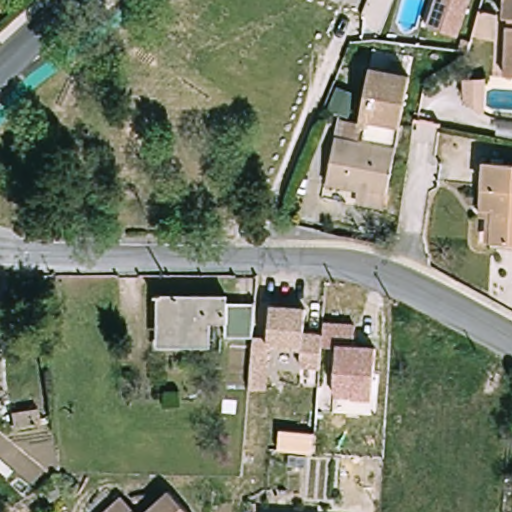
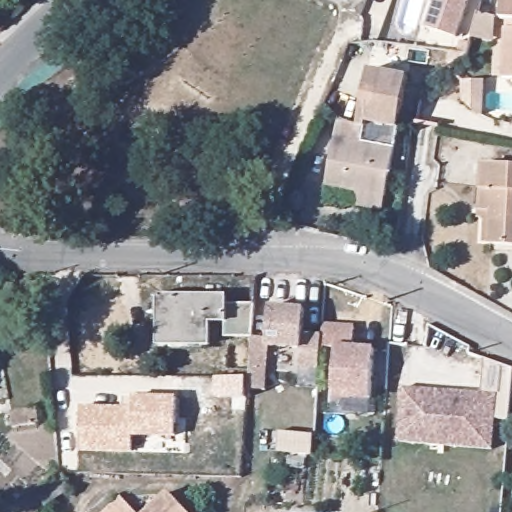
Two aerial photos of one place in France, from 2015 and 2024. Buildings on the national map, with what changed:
unchanged [(425,25),(433,0),(467,0),(456,35),(425,25)]
unchanged [(503,78),(507,19),(501,19),(502,0),(512,0),(512,78),(503,78)]
unchanged [(493,15),(491,41),(471,37),(478,11),(493,15)]
unchanged [(413,72),(404,121),(388,203),(361,198),(364,186),(330,180),(339,133),(366,138),(369,121),(363,120),(373,65),(413,72)]
unchanged [(463,80),(483,80),(484,115),(471,107),(462,100),(463,80)]
unchanged [(486,239),(487,206),(474,205),(478,160),(512,162),(512,240),(486,239)]
unchanged [(226,331),(226,316),(209,316),(209,337),(161,336),(161,290),(226,290),(226,299),(254,300),(251,331),(226,331)]
unchanged [(247,383),(249,361),(251,331),(267,333),(270,301),(304,305),(303,330),(321,331),(321,342),(319,364),(301,362),(299,362),(301,343),(268,341),(266,363),(264,385),(247,383)]
unchanged [(333,391),(333,385),(336,343),(321,342),(321,331),(323,325),(323,320),(348,322),(354,323),(353,344),(374,345),(371,395),(352,393),(344,392),(333,391)]
new [(403,387),(480,393),(483,357),(512,367),(512,374),(509,419),(494,417),(492,442),(491,448),(398,440),(399,435),(403,387)]
new [(176,396),(177,437),(133,436),(133,452),(79,451),(80,406),(123,407),(123,397),(133,398),(133,396),(176,396)]
unchanged [(38,406),(40,421),(14,426),(11,411),(38,406)]
new [(277,430),(311,433),(309,453),(275,450),(277,430)]
unchanged [(75,488),(48,505),(40,491),(66,474),(75,488)]
unchanged [(173,491),(192,512),(151,512),(173,491)]
unchanged [(125,497),(139,512),(109,512),(125,497)]

